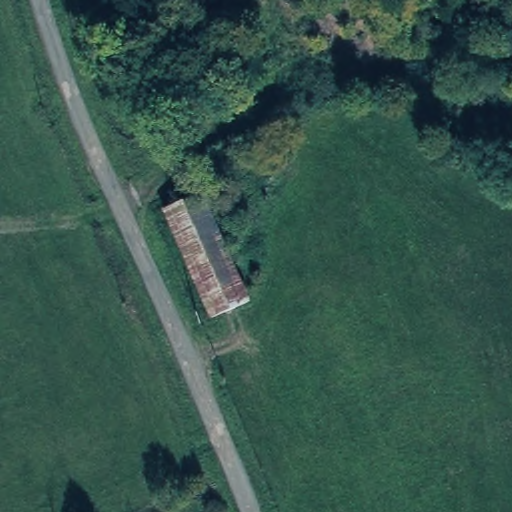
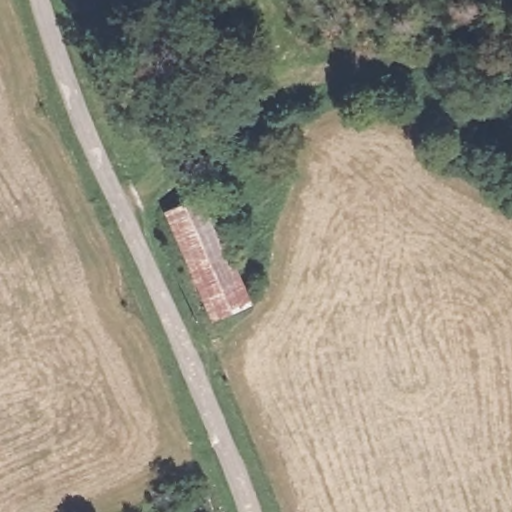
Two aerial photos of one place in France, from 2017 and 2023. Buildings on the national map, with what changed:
unchanged [(200,189),(247,295),(214,310),(167,204),(200,189)]

